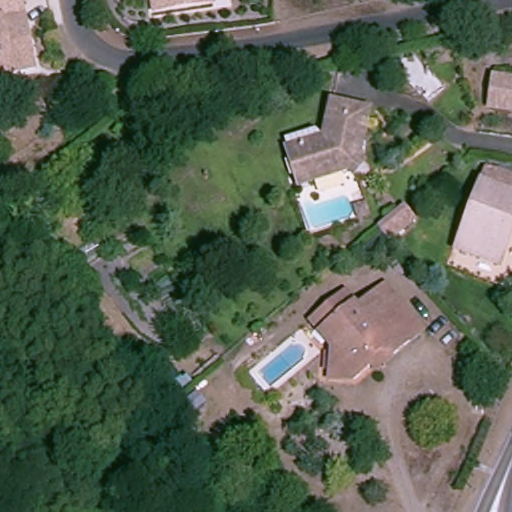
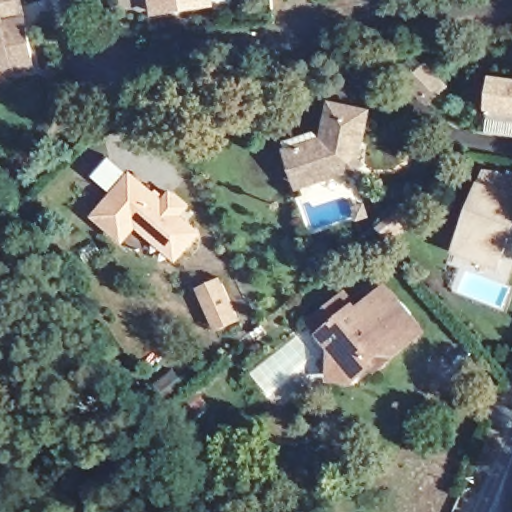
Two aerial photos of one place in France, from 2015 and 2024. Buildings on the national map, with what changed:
unchanged [(0,0),(30,0),(43,65),(15,71),(16,76),(0,79),(0,0)]
unchanged [(149,9),(148,0),(207,0),(149,9)]
new [(429,73),(446,98),(427,110),(410,85),(429,73)]
unchanged [(495,102),(500,73),(512,75),(512,105),(495,102)]
unchanged [(333,133),(341,98),(380,106),(371,152),(356,167),(310,183),(296,146),(333,133)]
new [(129,173),(132,170),(164,198),(171,189),(190,207),(183,215),(202,232),(176,262),(137,230),(124,244),(91,217),(114,191),(94,176),(111,156),(129,173)]
unchanged [(498,266),(457,250),(487,172),(498,173),(512,179),(512,229),(498,266)]
unchanged [(405,205),(416,218),(392,239),(380,225),(405,205)]
new [(222,277),(239,320),(215,331),(196,288),(222,277)]
unchanged [(390,282),(427,326),(399,351),(384,348),(375,356),(378,360),(357,377),(335,375),(337,344),(325,330),(315,318),(349,289),(359,301),(363,305),(390,282)]

